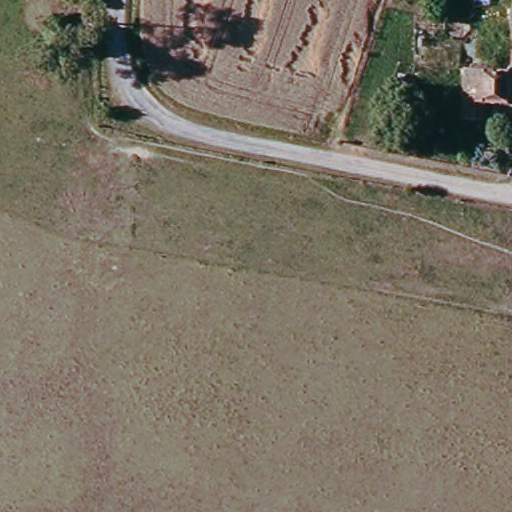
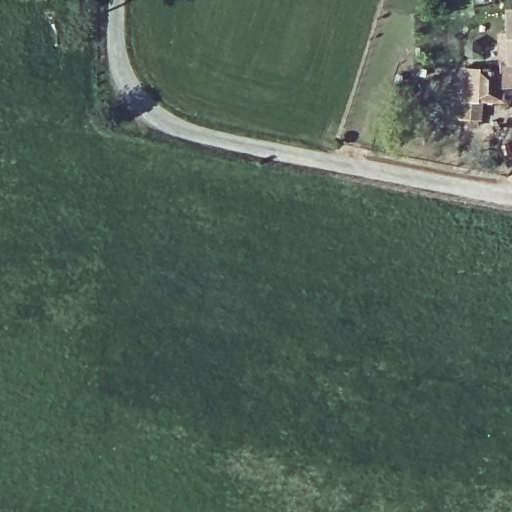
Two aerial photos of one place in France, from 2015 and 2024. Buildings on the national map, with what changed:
unchanged [(465,64),(496,66),(494,95),(481,94),(479,120),(461,120),(465,64)]

